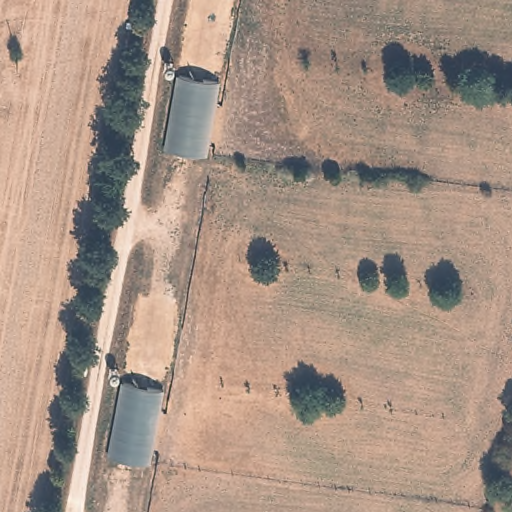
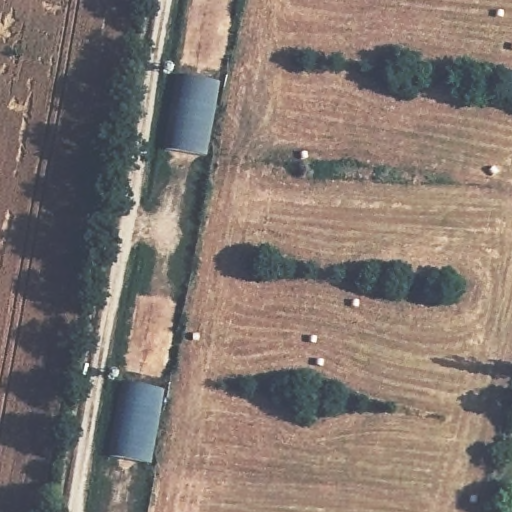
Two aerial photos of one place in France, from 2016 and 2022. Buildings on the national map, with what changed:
unchanged [(218,0),(232,3),(220,75),(180,68),(192,0),(218,0)]
unchanged [(180,304),(168,376),(124,369),(137,297),(180,304)]

